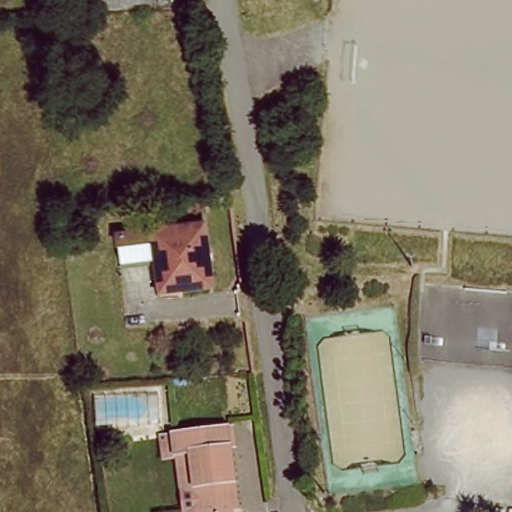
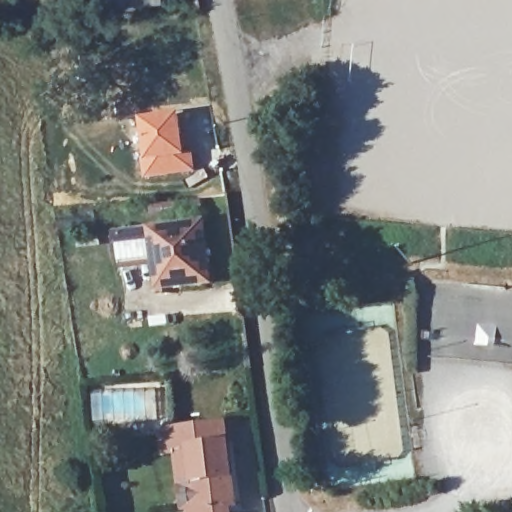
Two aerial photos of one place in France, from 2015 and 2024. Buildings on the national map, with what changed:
new [(181,113),(187,153),(193,152),(196,174),(145,180),(142,119),(181,113)]
unchanged [(210,287),(167,294),(162,261),(124,266),(120,236),(203,226),(210,287)]
unchanged [(231,504),(233,512),(195,512),(194,508),(202,506),(191,446),(178,448),(175,428),(225,421),(238,502),(231,504)]

